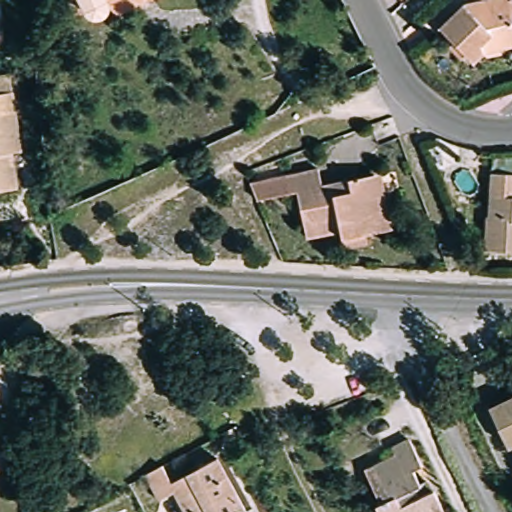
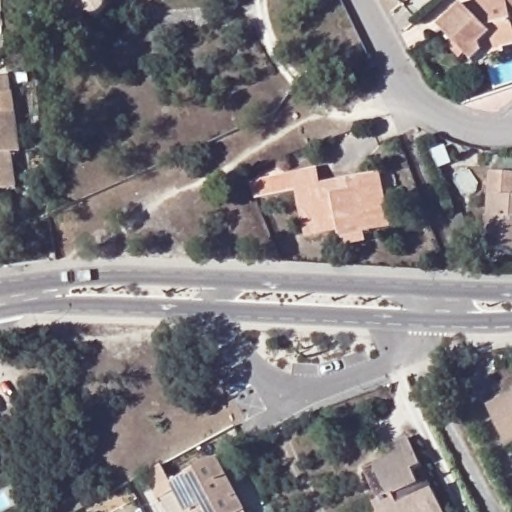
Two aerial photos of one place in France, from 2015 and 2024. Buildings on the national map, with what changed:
unchanged [(97,19),(91,17),(86,13),(75,17),(67,0),(107,0),(120,0),(110,5),(108,13),(105,17),(97,19)]
unchanged [(444,34),(467,11),(483,7),(510,0),(512,10),(512,51),(507,52),(489,57),(478,67),(444,34)]
unchanged [(9,91),(10,100),(19,152),(10,154),(15,189),(0,191),(0,92),(9,91)]
unchanged [(509,197),(512,198),(512,252),(485,250),(485,217),(489,217),(491,175),(512,175),(512,191),(510,191),(509,197)]
unchanged [(384,179),(395,235),(376,239),(347,245),(345,237),(311,243),(302,197),(293,199),(291,183),(322,176),(325,190),(342,187),(352,185),(376,180),(384,179)]
unchanged [(490,408),(512,398),(512,444),(508,446),(490,408)]
unchanged [(272,432),(283,426),(287,433),(276,440),(272,432)]
unchanged [(377,506),(382,504),(366,471),(394,457),(391,448),(409,440),(422,465),(414,470),(419,482),(428,478),(434,491),(444,512),(380,512),(377,506)]
unchanged [(179,497),(165,505),(151,480),(166,471),(176,488),(221,464),(247,512),(187,512),(179,497)]
unchanged [(1,468),(0,469),(0,466),(1,468)]

